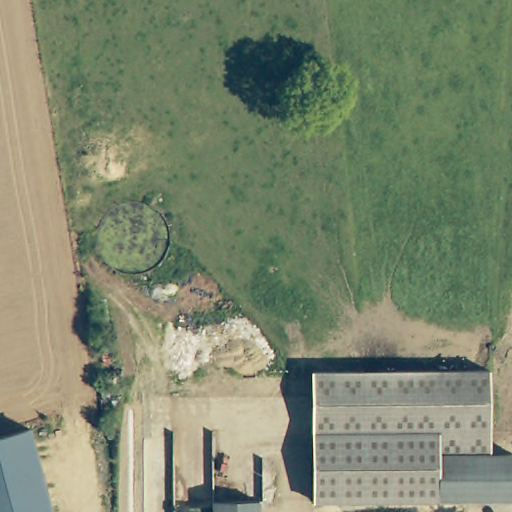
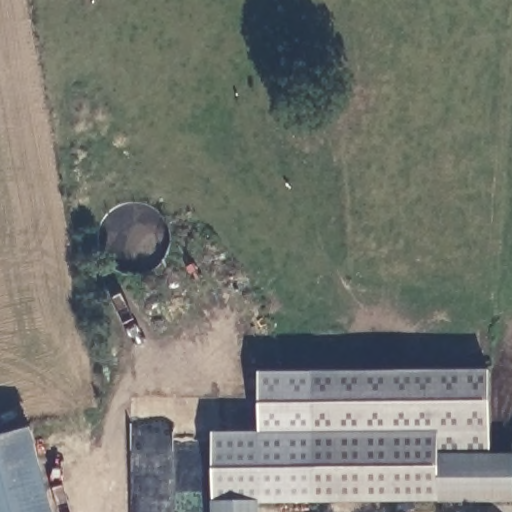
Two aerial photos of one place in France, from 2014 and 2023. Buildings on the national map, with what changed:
new [(213,432),(258,430),(259,372),(307,371),(307,407),(307,500),(252,500),(213,500),(213,432)]
unchanged [(484,371),(484,426),(484,455),(508,455),(508,495),(508,496),(508,500),(507,500),(461,500),(307,500),(307,407),(307,371),(484,371)]
unchanged [(24,425),(46,512),(0,512),(0,431),(24,425)]
unchanged [(252,512),(207,512),(207,500),(252,500),(252,512)]

